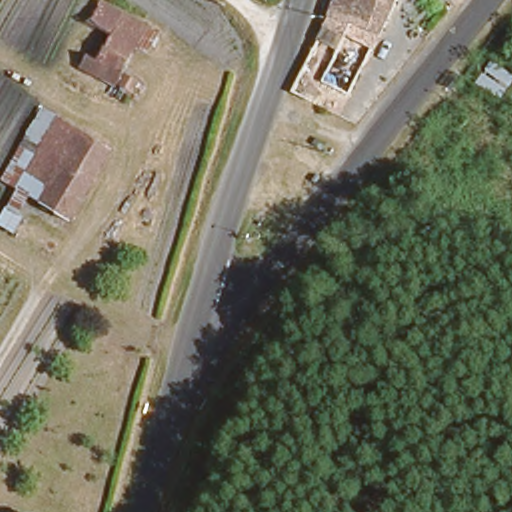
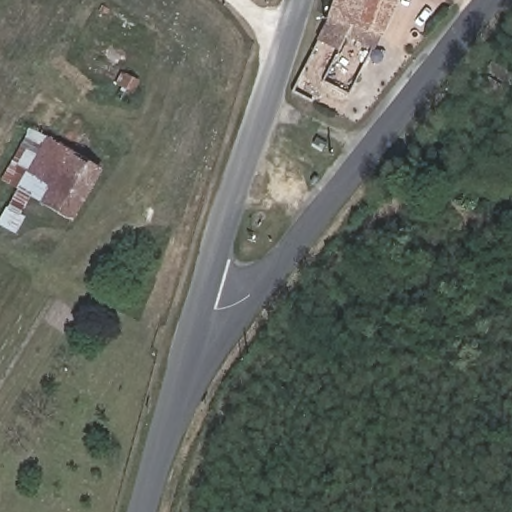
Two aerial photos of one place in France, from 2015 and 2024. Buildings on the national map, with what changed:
unchanged [(147,19),(115,76),(79,57),(111,0),(147,19)]
unchanged [(390,13),(336,115),(285,90),(328,8),(331,0),(395,0),(390,13)]
unchanged [(139,75),(135,85),(125,81),(129,71),(139,75)]
unchanged [(70,231),(6,193),(25,159),(37,138),(55,108),(117,145),(90,196),(70,231)]

